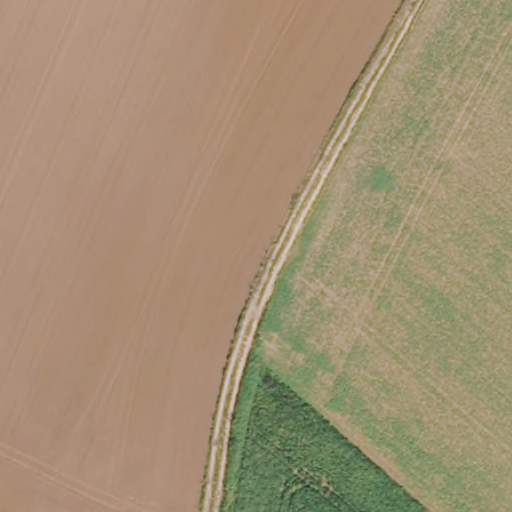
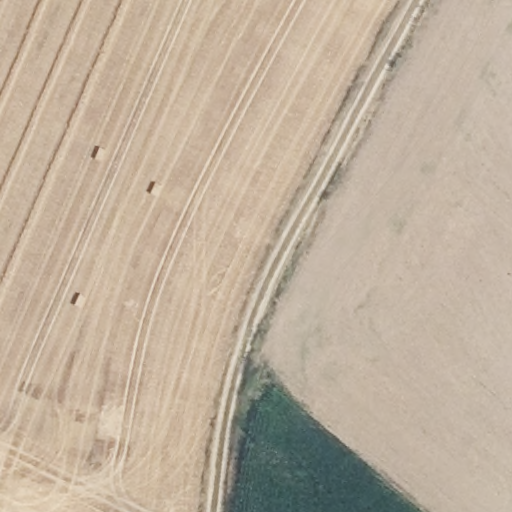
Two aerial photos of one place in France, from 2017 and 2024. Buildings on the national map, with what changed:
[]

